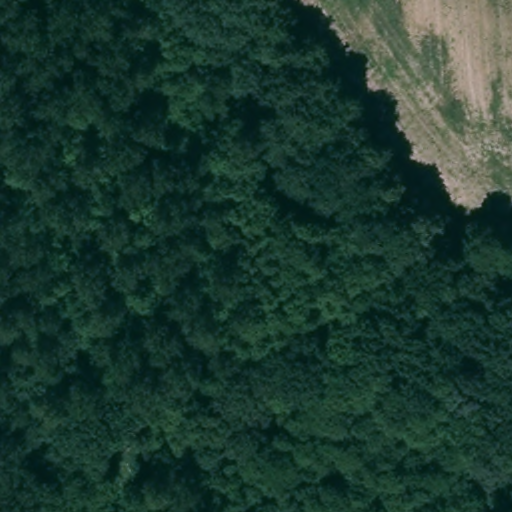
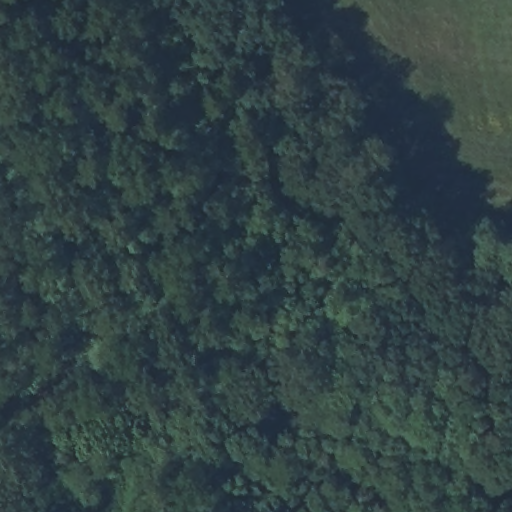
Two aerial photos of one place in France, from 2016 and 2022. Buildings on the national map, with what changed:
[]

